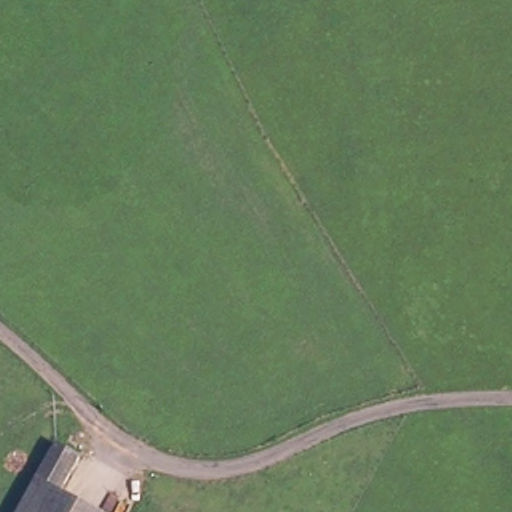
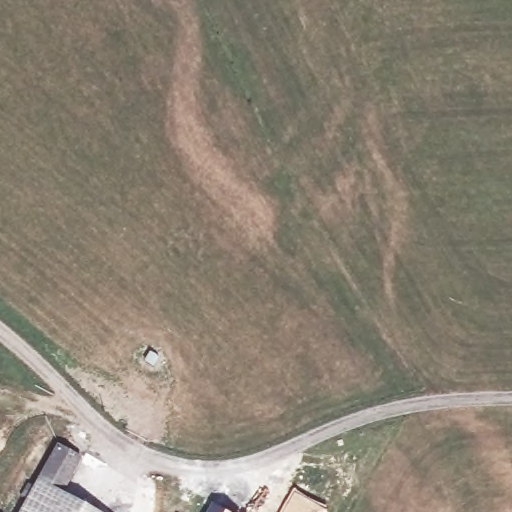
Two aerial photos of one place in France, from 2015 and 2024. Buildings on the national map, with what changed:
unchanged [(62,493),(96,512),(17,512),(55,443),(82,457),(62,493)]
new [(330,508),(328,512),(281,512),(295,488),(330,508)]
new [(233,512),(207,512),(213,501),(233,512)]

